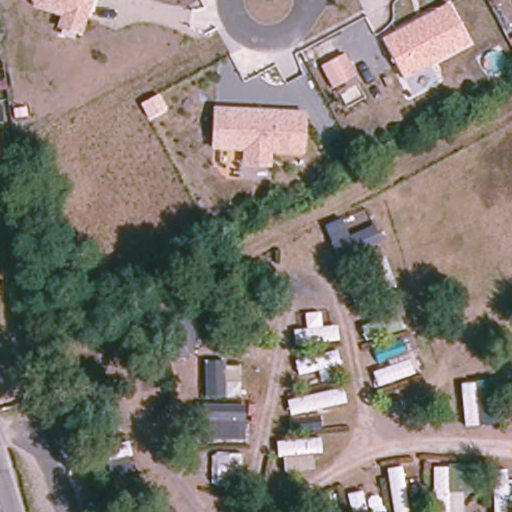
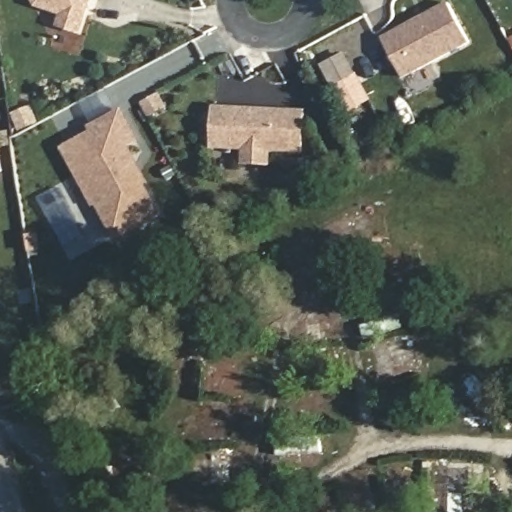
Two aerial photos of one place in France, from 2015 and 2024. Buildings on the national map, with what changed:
unchanged [(83,35),(55,27),(59,14),(33,6),(29,0),(94,0),(83,35)]
unchanged [(404,80),(382,38),(449,2),(471,44),(404,80)]
unchanged [(332,89),(321,65),(346,53),(357,75),(332,89)]
unchanged [(3,122),(0,123),(0,106),(1,105),(3,122)]
unchanged [(304,153),(272,152),(271,166),(242,165),(242,151),(210,149),(212,106),(307,110),(304,153)]
new [(132,147),(151,184),(149,186),(159,205),(164,216),(116,243),(99,207),(94,209),(61,149),(92,132),(88,127),(123,109),(141,142),(132,147)]
unchanged [(0,148),(0,134),(9,132),(12,146),(0,148)]
unchanged [(0,172),(0,152),(3,172),(0,172)]
unchanged [(0,355),(8,353),(15,377),(0,382),(0,355)]

